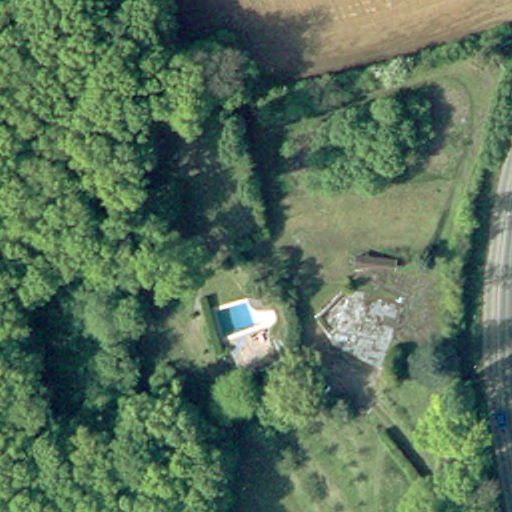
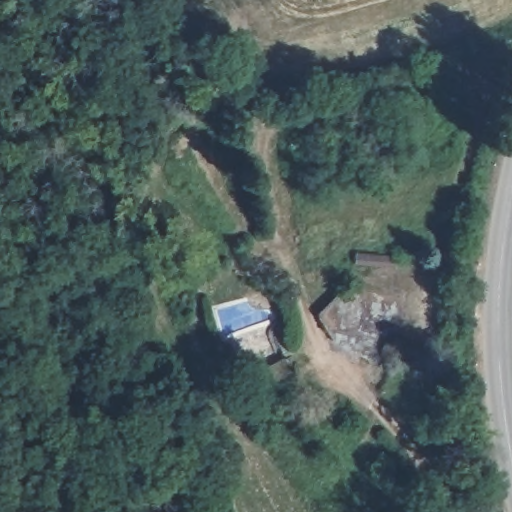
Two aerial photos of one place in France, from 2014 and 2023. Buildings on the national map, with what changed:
unchanged [(340,339),(327,312),(354,284),(412,299),(395,368),(340,339)]

